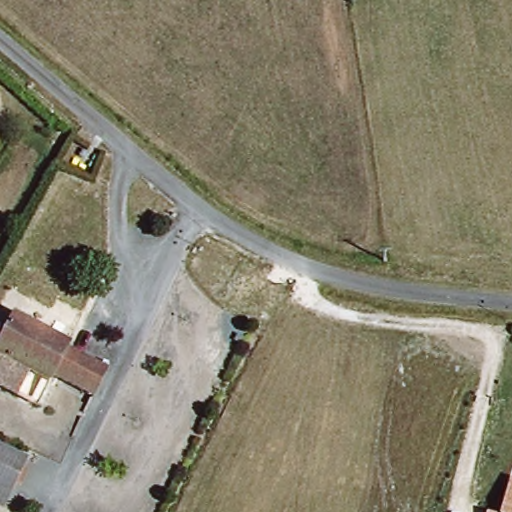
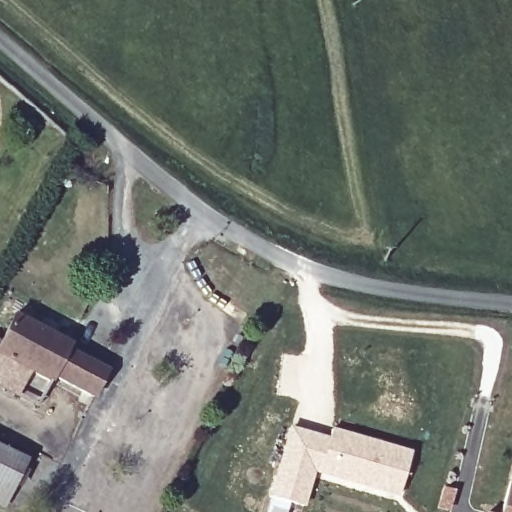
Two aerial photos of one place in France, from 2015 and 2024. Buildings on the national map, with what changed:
unchanged [(0,391),(0,348),(15,318),(72,347),(68,353),(55,380),(38,411),(0,391)]
unchanged [(68,353),(108,374),(94,401),(55,380),(68,353)]
new [(292,424),(327,435),(331,426),(413,449),(398,498),(315,475),(305,507),(290,502),(287,512),(265,512),(269,496),(292,424)]
unchanged [(32,463),(17,493),(0,486),(0,448),(32,463)]
unchanged [(509,482),(512,483),(512,512),(502,512),(509,482)]
unchanged [(10,508),(0,504),(0,486),(17,493),(10,508)]

